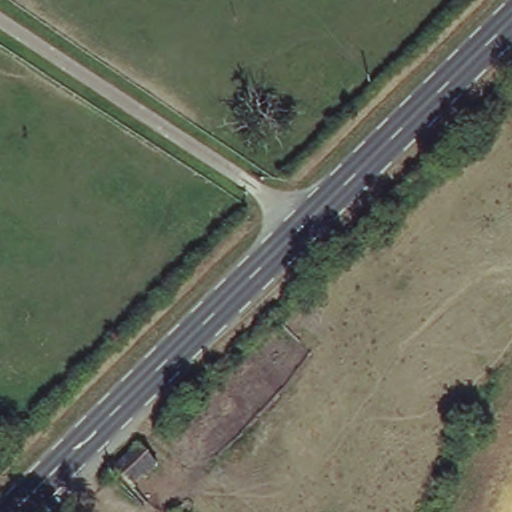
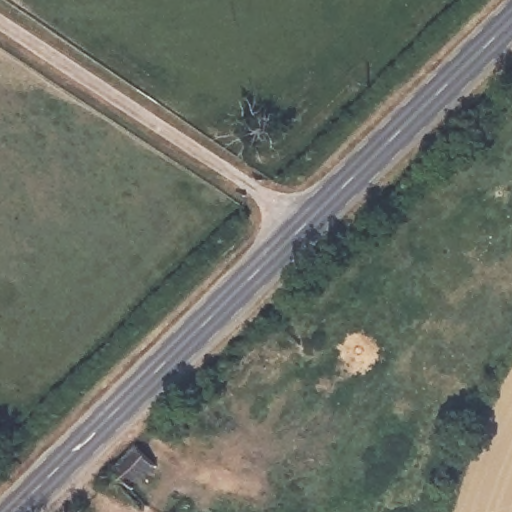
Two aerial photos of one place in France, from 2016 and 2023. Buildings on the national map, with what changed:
unchanged [(160,470),(136,495),(116,475),(141,450),(160,470)]

